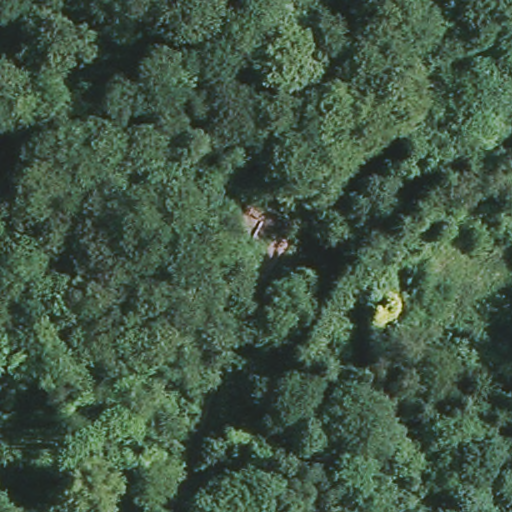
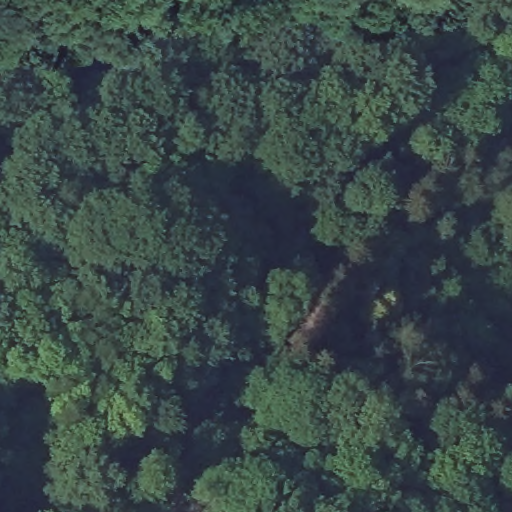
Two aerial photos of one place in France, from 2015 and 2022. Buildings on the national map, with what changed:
unchanged [(375,348),(364,387),(328,376),(340,338),(375,348)]

